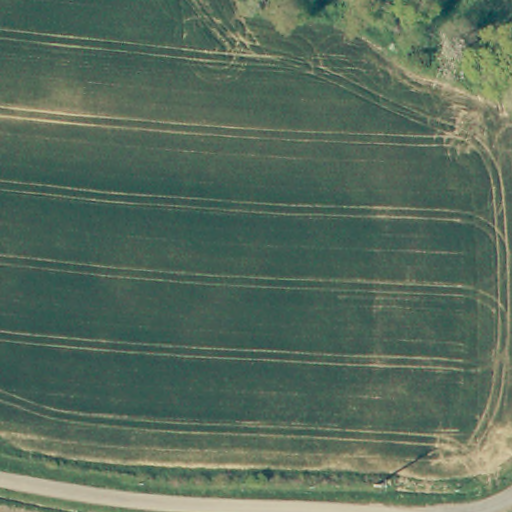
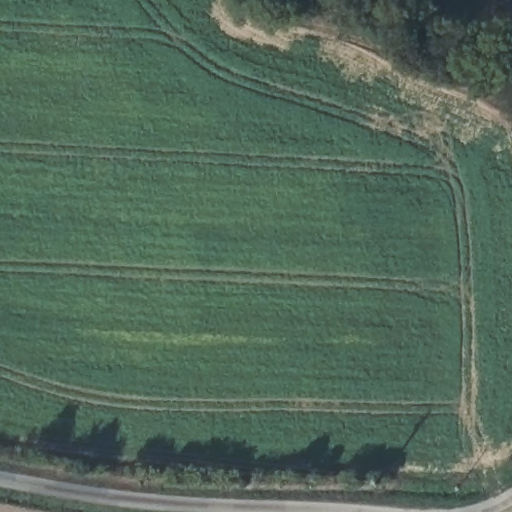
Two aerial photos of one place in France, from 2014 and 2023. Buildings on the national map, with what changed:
[]

